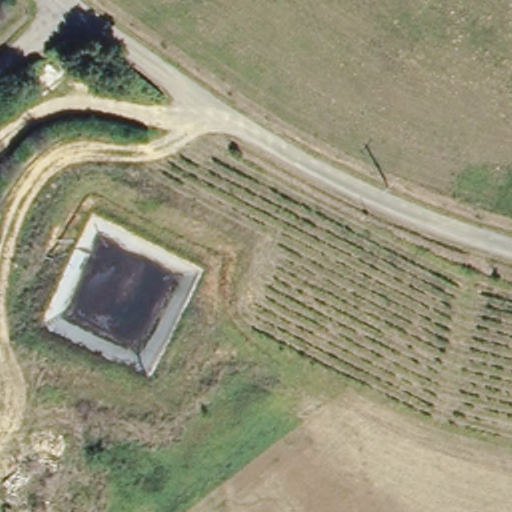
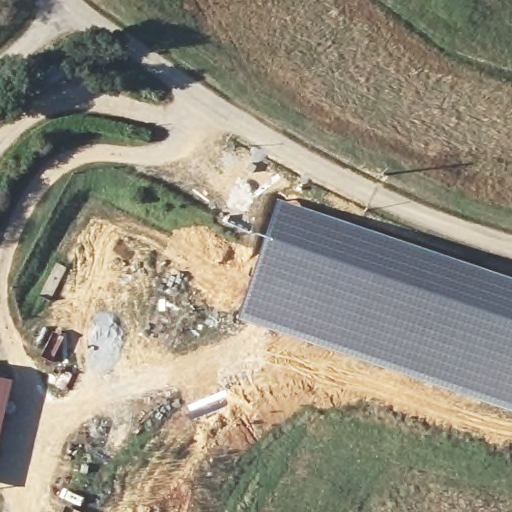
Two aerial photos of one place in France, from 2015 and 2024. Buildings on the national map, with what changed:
new [(278,198),(333,215),(512,277),(512,410),(487,400),(395,363),(397,359),(366,344),(360,340),(355,344),(350,342),(349,343),(348,343),(346,348),(302,338),(237,317),(276,198),(278,198)]
new [(5,378),(0,398),(0,377),(5,378)]

